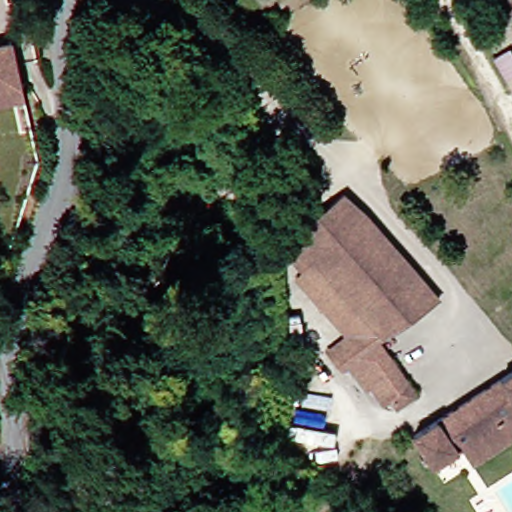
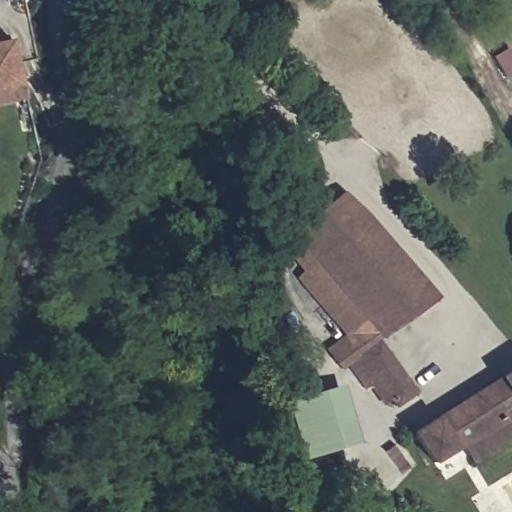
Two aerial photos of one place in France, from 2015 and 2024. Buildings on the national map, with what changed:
unchanged [(28,89),(0,94),(0,43),(18,40),(28,89)]
unchanged [(355,366),(348,371),(337,357),(332,350),(349,336),(301,279),(307,273),(320,261),(298,236),(349,193),(372,212),(444,297),(384,341),(422,393),(402,407),(384,382),(373,391),(355,366)]
unchanged [(461,447),(433,464),(414,433),(512,372),(512,414),(461,447)]
new [(360,442),(302,458),(285,401),(344,384),(360,442)]
unchanged [(512,414),(512,438),(472,463),(461,447),(512,414)]

